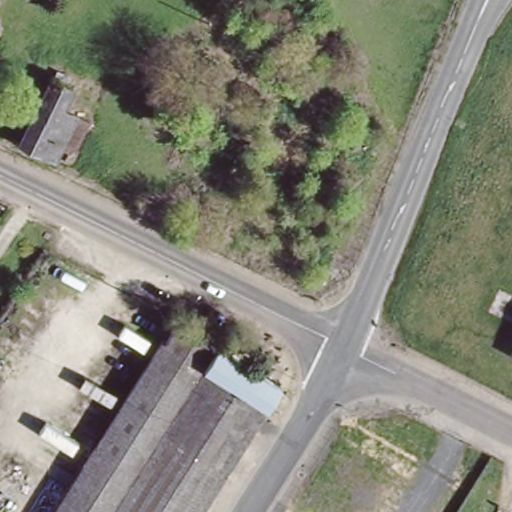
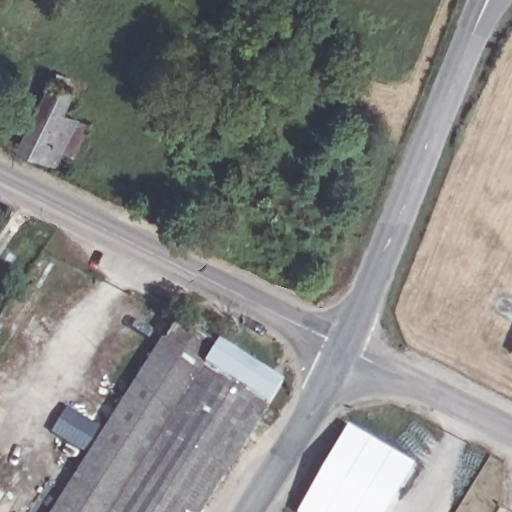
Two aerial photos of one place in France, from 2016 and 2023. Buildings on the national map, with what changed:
unchanged [(51,75),(75,85),(65,104),(89,117),(70,156),(61,151),(54,165),(40,157),(15,145),(51,75)]
unchanged [(194,320),(72,512),(57,512),(186,315),(194,320)]
unchanged [(224,340),(115,512),(72,512),(194,320),(224,340)]
unchanged [(289,383),(206,512),(115,512),(224,340),(289,383)]
unchanged [(512,354),(509,353),(512,348),(512,354)]
new [(412,466),(386,512),(299,512),(349,430),(412,466)]

